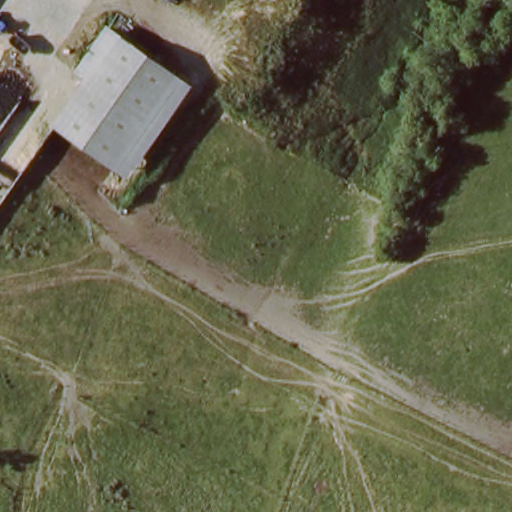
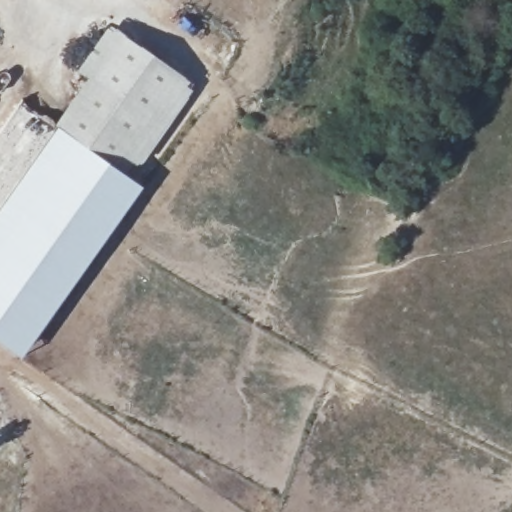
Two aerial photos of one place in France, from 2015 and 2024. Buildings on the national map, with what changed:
unchanged [(48,120),(113,21),(200,87),(135,182),(48,120)]
new [(135,182),(144,187),(23,358),(0,342),(0,210),(58,127),(135,182)]

